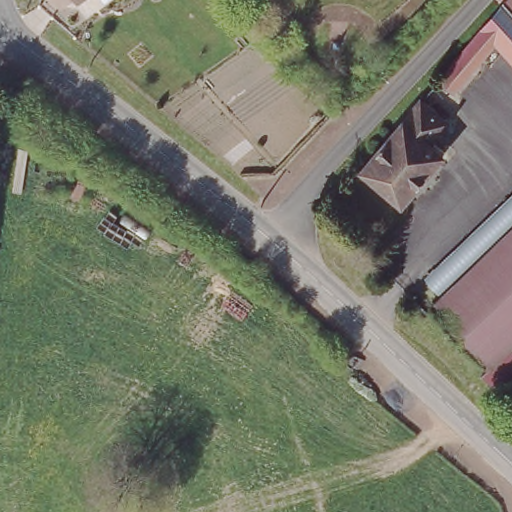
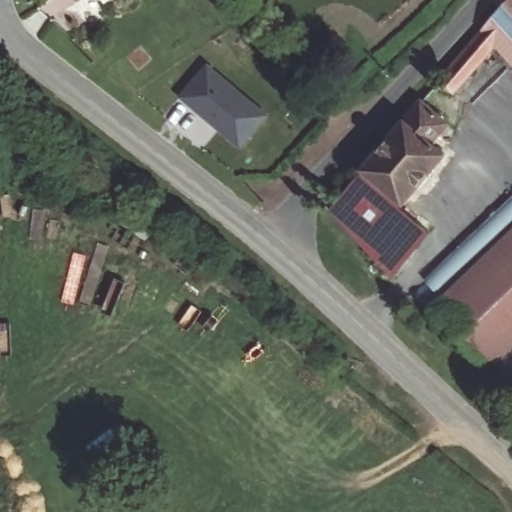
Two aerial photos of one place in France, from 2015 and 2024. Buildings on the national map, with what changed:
unchanged [(81,0),(85,0),(82,2),(81,0)]
unchanged [(100,0),(117,0),(106,8),(100,0)]
unchanged [(507,3),(509,0),(512,0),(512,9),(507,3)]
unchanged [(495,49),(453,94),(438,80),(507,3),(512,9),(512,68),(495,49)]
new [(271,114),(242,148),(180,96),(208,62),(271,114)]
unchanged [(447,124),(430,142),(445,156),(402,208),(359,171),(420,100),(447,124)]
new [(327,209),(359,171),(402,208),(430,232),(392,278),(327,209)]
unchanged [(491,370),(434,306),(512,235),(512,395),(506,400),(485,375),(491,370)]

